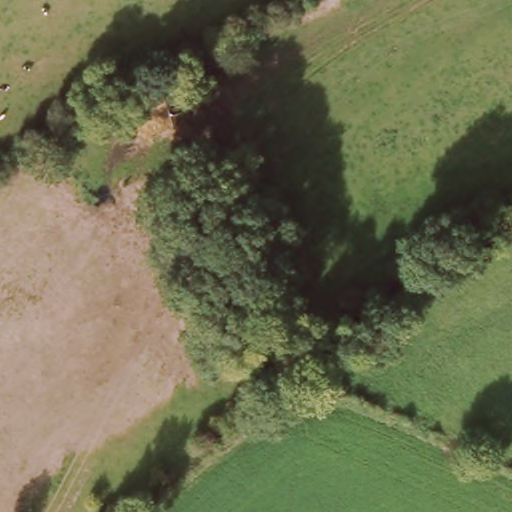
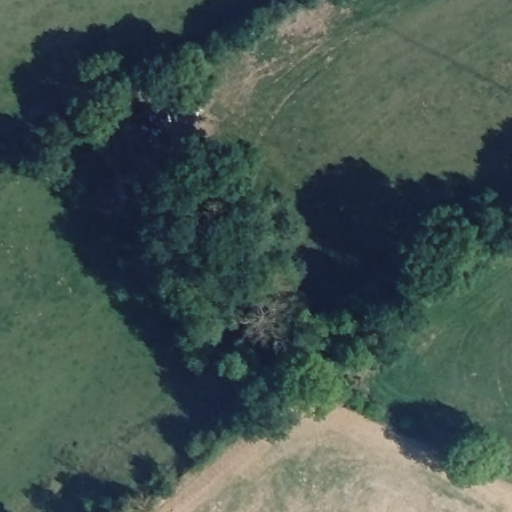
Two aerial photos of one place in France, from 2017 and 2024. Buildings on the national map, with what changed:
unchanged [(179,80),(198,129),(152,145),(135,100),(179,80)]

